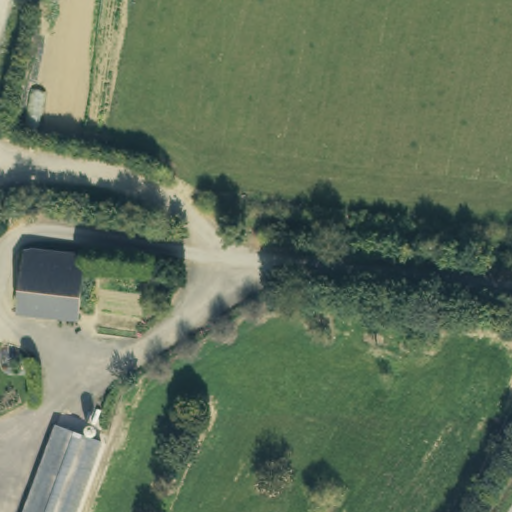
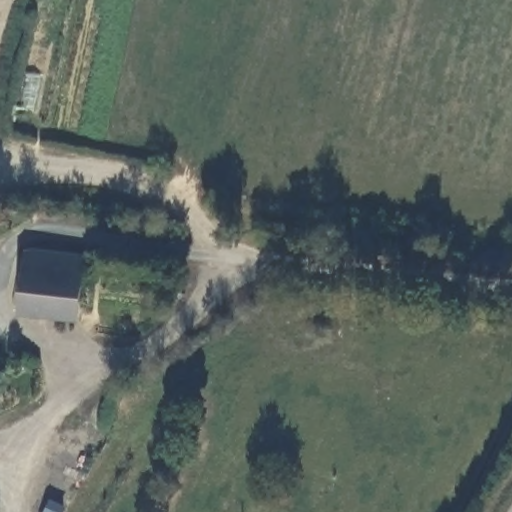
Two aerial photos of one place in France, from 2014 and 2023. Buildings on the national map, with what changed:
unchanged [(18,315),(25,251),(85,257),(77,321),(18,315)]
demolished [(57,426),(97,441),(72,512),(23,512),(54,426),(57,426)]

